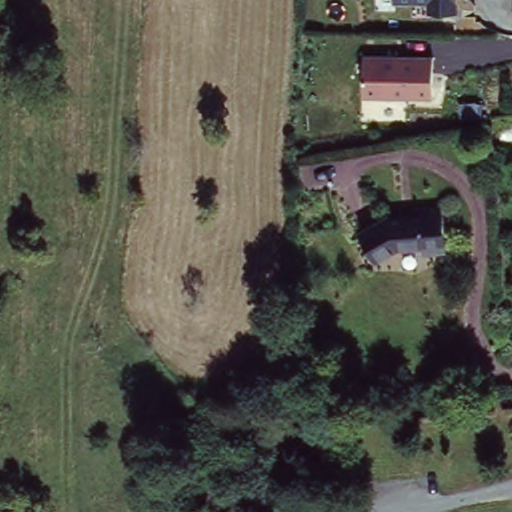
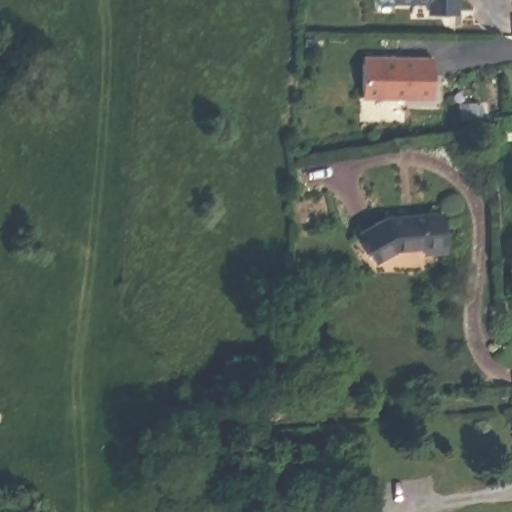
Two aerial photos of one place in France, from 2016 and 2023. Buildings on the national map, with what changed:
unchanged [(461,14),(429,14),(429,2),(394,2),(394,0),(460,0),(461,14)]
unchanged [(435,100),(362,98),(363,51),(434,54),(435,100)]
unchanged [(389,214),(443,208),(445,247),(425,248),(424,242),(398,245),(376,257),(361,229),(389,214)]

